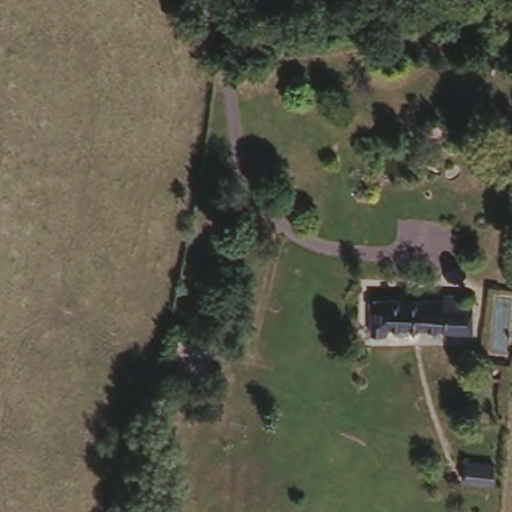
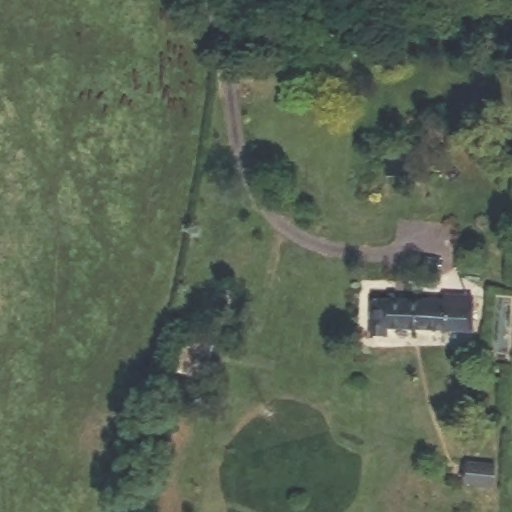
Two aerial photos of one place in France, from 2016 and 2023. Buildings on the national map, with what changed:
unchanged [(407,331),(385,329),(385,339),(366,337),(370,296),(408,300),(410,289),(476,297),(475,337),(407,331)]
unchanged [(181,339),(211,345),(206,373),(177,364),(181,339)]
unchanged [(494,462),(492,484),(462,480),(465,458),(473,459),(494,462)]

